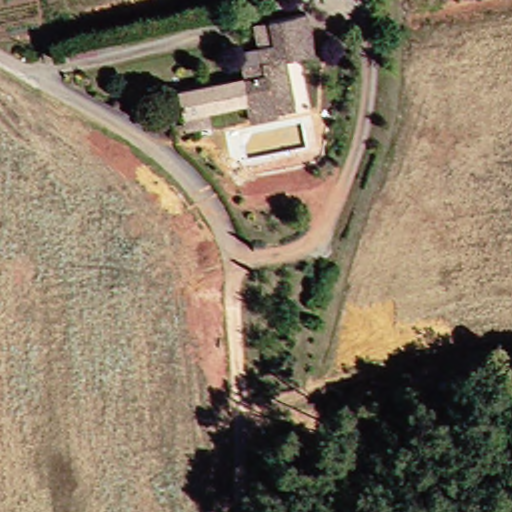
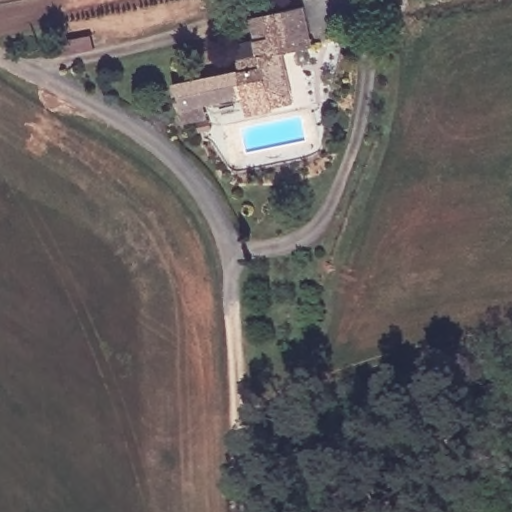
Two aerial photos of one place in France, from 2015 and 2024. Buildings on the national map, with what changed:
unchanged [(178,108),(170,81),(233,71),(231,62),(254,60),(251,50),(248,36),(246,24),(261,22),(298,14),(300,25),(303,53),(275,58),(282,111),(240,118),(236,100),(203,105),(205,123),(180,125),(178,108)]

